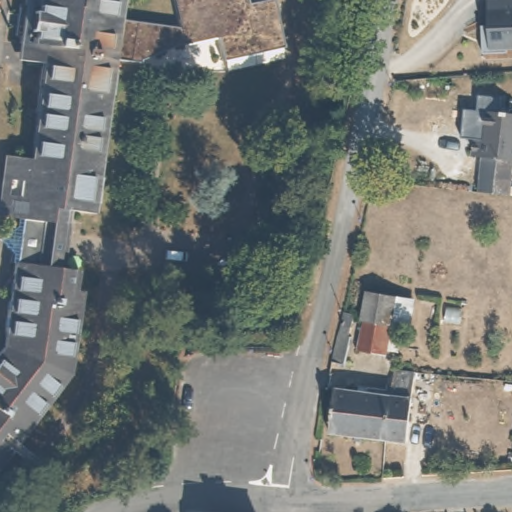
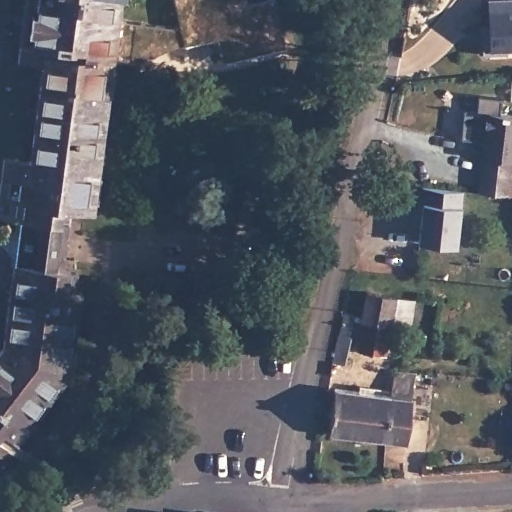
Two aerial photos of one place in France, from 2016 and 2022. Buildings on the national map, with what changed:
unchanged [(111,24),(14,1),(14,0),(114,0),(111,24)]
unchanged [(115,18),(178,28),(173,0),(249,0),(249,2),(263,0),(275,0),(285,47),(221,60),(215,37),(182,43),(141,60),(140,65),(110,59),(115,18)]
unchanged [(297,2),(321,0),(327,0),(331,34),(300,37),(297,2)]
unchanged [(482,57),(481,23),(487,23),(487,0),(512,0),(512,57),(482,57)]
unchanged [(0,220),(0,156),(11,157),(26,60),(3,57),(14,1),(111,24),(79,231),(46,227),(40,272),(0,266),(0,227),(1,220),(0,220)]
unchanged [(508,154),(506,171),(475,169),(478,150),(466,149),(468,131),(480,132),(483,106),(512,110),(512,154),(508,154)]
unchanged [(475,172),(506,173),(505,189),(475,186),(475,172)]
new [(425,208),(422,207),(424,191),(465,196),(458,251),(420,246),(425,208)]
unchanged [(62,275),(59,298),(66,299),(53,383),(39,400),(46,405),(1,459),(0,461),(0,266),(40,272),(62,275)]
unchanged [(387,366),(360,363),(366,312),(361,311),(365,280),(397,284),(395,310),(387,366)]
unchanged [(343,315),(352,318),(348,340),(352,341),(348,370),(332,369),(343,315)]
unchanged [(394,398),(397,376),(416,377),(407,443),(388,441),(394,398)]
unchanged [(329,435),(334,391),(394,398),(388,441),(329,435)]

